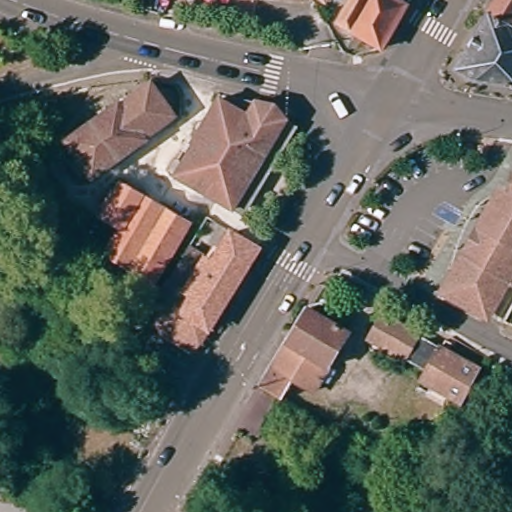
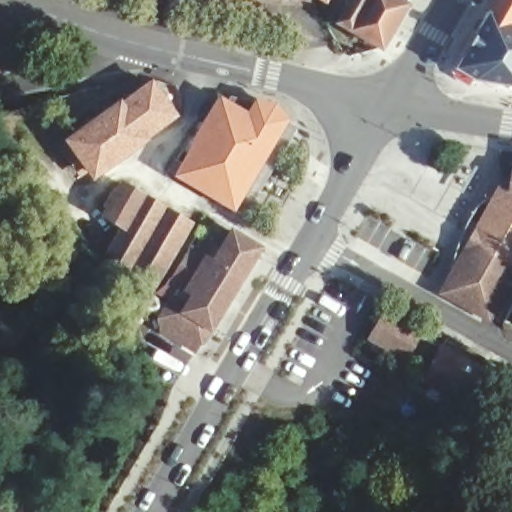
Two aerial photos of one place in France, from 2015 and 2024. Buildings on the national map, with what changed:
unchanged [(304,1),(299,0),(304,0),(304,1)]
unchanged [(323,2),(320,0),(324,0),(323,2)]
unchanged [(378,50),(334,24),(348,0),(395,0),(404,6),(378,50)]
unchanged [(453,70),(486,15),(495,0),(512,0),(512,88),(472,82),(453,70)]
demolished [(17,39),(10,53),(0,48),(0,31),(17,39)]
unchanged [(176,119),(96,176),(88,166),(80,171),(66,152),(75,146),(72,142),(152,85),(176,119)]
unchanged [(279,115),(225,204),(169,171),(187,141),(186,140),(212,95),(219,100),(223,93),(267,101),(279,115)]
unchanged [(289,122),(236,211),(225,204),(279,115),(289,122)]
unchanged [(446,286),(463,255),(478,227),(497,193),(506,194),(507,194),(510,176),(512,176),(512,289),(503,285),(485,317),(449,297),(446,286)]
unchanged [(130,299),(136,289),(142,279),(107,260),(104,256),(120,228),(101,217),(120,186),(187,224),(152,285),(146,295),(140,305),(130,299)]
unchanged [(207,330),(206,328),(198,343),(196,342),(191,351),(159,332),(157,320),(167,302),(153,293),(163,277),(167,280),(168,280),(187,249),(210,263),(228,232),(256,249),(207,330)]
demolished [(326,362),(326,363),(319,375),(312,387),(290,373),(278,393),(260,382),(286,339),(307,305),(347,328),(326,362)]
unchanged [(426,382),(431,373),(419,367),(407,360),(373,340),(387,316),(420,335),(432,342),(444,349),(483,371),(465,403),(426,382)]

